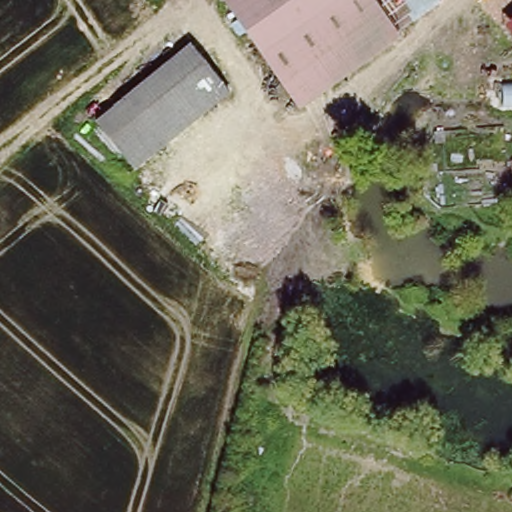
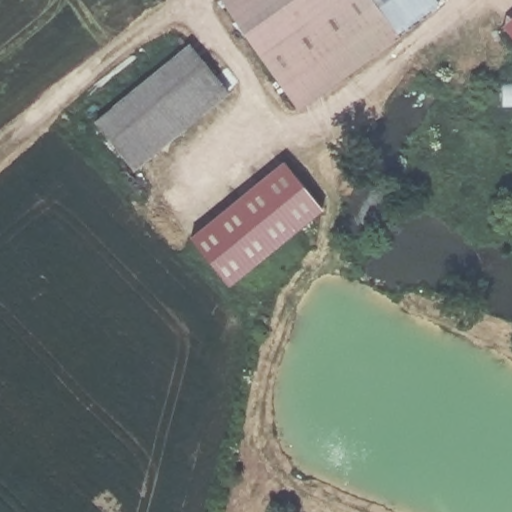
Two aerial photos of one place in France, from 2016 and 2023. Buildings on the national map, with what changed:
unchanged [(438,2),(396,33),(400,40),(300,109),(223,0),(437,0),(438,2)]
unchanged [(507,27),(512,24),(512,33),(507,27)]
unchanged [(190,48),(225,95),(134,170),(97,125),(190,48)]
new [(288,164),(291,168),(328,213),(237,288),(197,239),(288,164)]

